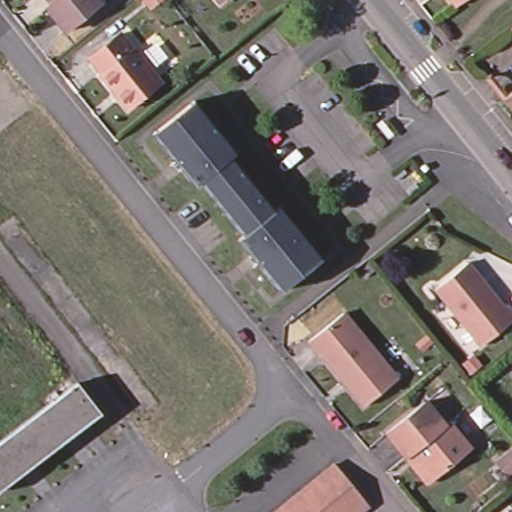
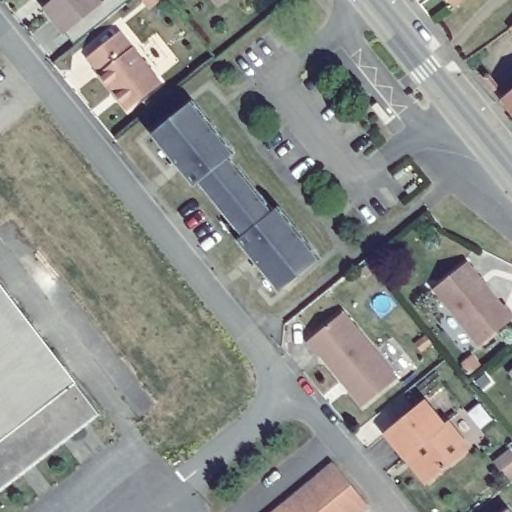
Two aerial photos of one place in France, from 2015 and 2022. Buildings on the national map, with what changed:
unchanged [(104,13),(67,43),(46,18),(51,14),(40,0),(93,0),(104,13)]
unchanged [(226,6),(221,0),(233,0),(226,6)]
unchanged [(457,7),(452,0),(466,0),(457,7)]
unchanged [(123,40),(162,87),(130,114),(103,82),(104,80),(92,65),(123,40)]
unchanged [(512,93),(512,109),(504,100),(512,93)]
unchanged [(201,190),(195,193),(155,142),(196,109),(237,162),(232,165),(253,191),(221,216),(201,190)]
unchanged [(240,249),(244,245),(221,216),(253,191),(276,221),(281,216),(322,268),(280,301),(240,249)]
unchanged [(512,313),(512,330),(483,352),(440,292),(472,268),(507,315),(511,312),(512,313)]
new [(72,378),(0,439),(0,283),(72,378)]
unchanged [(400,389),(368,415),(327,364),(325,366),(313,352),(347,323),(400,389)]
unchanged [(98,410),(87,419),(90,423),(82,430),(79,425),(3,487),(0,483),(0,439),(72,378),(98,410)]
unchanged [(398,457),(378,435),(418,402),(437,426),(441,422),(462,449),(425,479),(420,483),(398,457)]
unchanged [(334,465),(351,486),(367,506),(360,512),(278,512),(310,486),(334,465)]
unchanged [(497,512),(505,506),(510,512),(497,512)]

